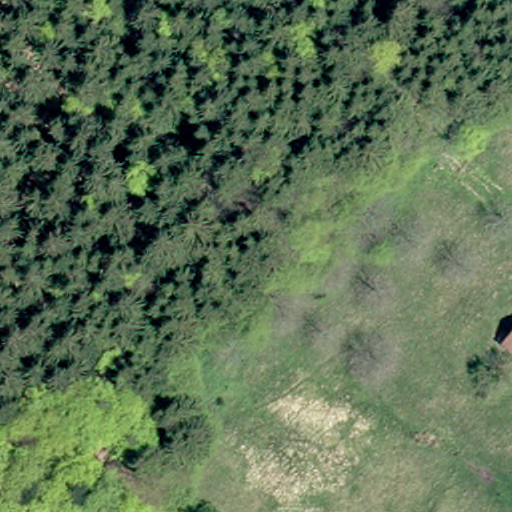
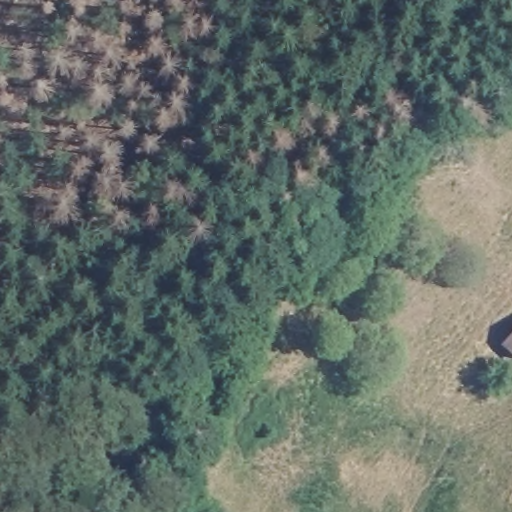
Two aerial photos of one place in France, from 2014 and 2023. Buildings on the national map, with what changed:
unchanged [(512,327),(512,355),(498,342),(512,327)]

